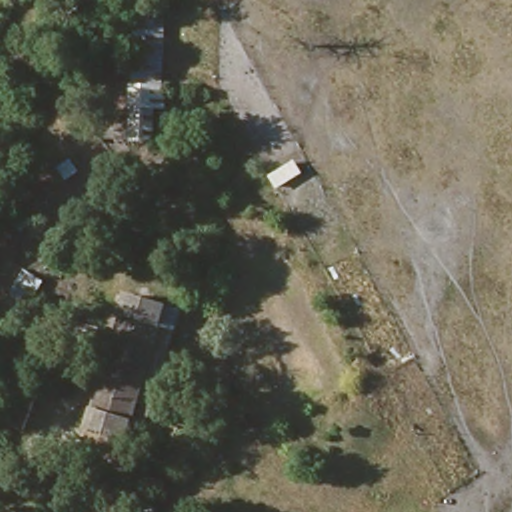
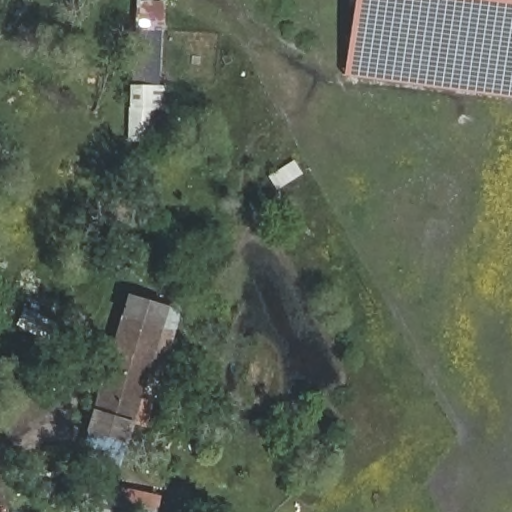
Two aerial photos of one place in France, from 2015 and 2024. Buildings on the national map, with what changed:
new [(512,98),(347,76),(359,0),(512,0),(512,98)]
unchanged [(166,100),(129,99),(129,10),(166,7),(166,100)]
unchanged [(128,422),(124,436),(85,424),(127,301),(158,311),(128,422)]
unchanged [(181,319),(146,427),(128,422),(158,311),(181,319)]
unchanged [(229,474),(198,465),(209,422),(240,427),(229,474)]

